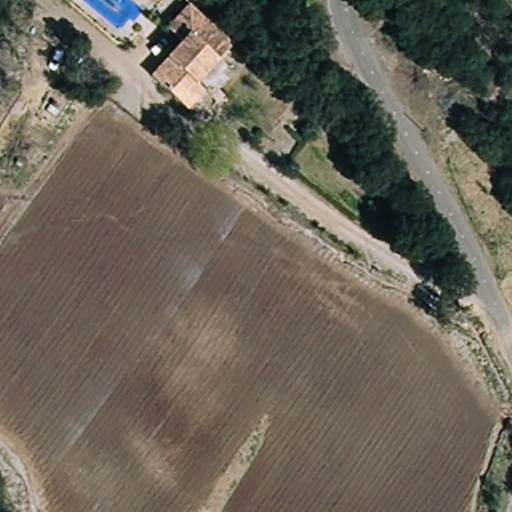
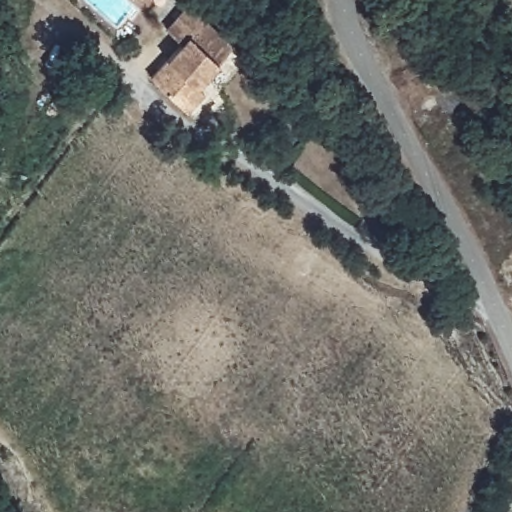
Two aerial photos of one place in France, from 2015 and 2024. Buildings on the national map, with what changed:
unchanged [(183,48),(170,34),(191,9),(248,64),(196,122),(155,81),(183,48)]

